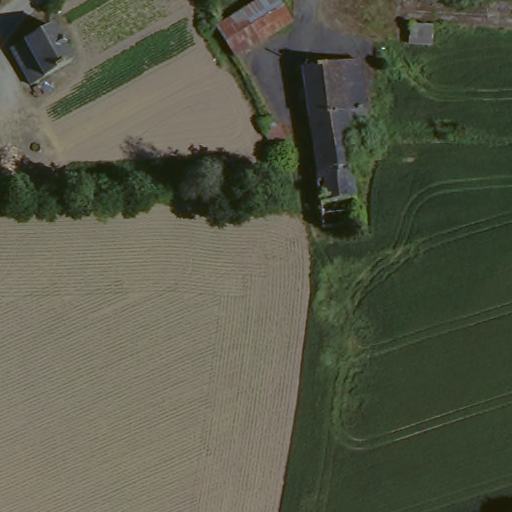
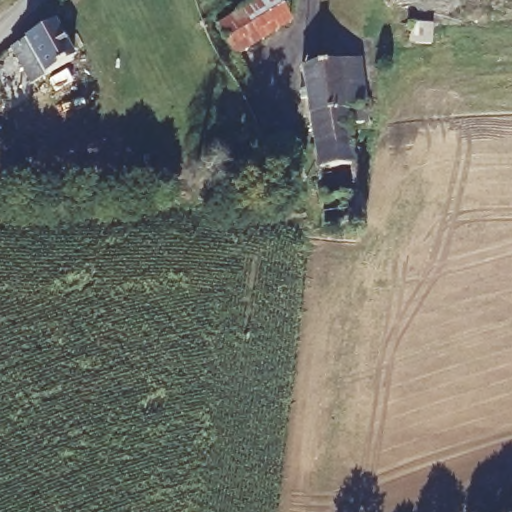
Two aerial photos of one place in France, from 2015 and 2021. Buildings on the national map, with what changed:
unchanged [(265,0),(277,0),(292,25),(236,58),(216,30),(265,0)]
unchanged [(18,45),(60,24),(78,60),(37,81),(18,45)]
unchanged [(431,29),(431,47),(408,46),(408,27),(431,29)]
unchanged [(310,107),(304,61),(336,57),(360,54),(375,49),(379,82),(363,83),(366,115),(348,117),(345,101),(310,107)]
unchanged [(354,158),(355,184),(356,217),(322,220),(319,185),(316,148),(311,115),(310,107),(345,101),(348,117),(350,136),(354,158)]

